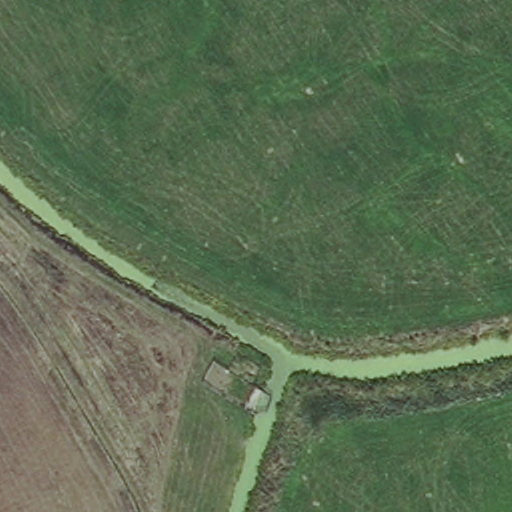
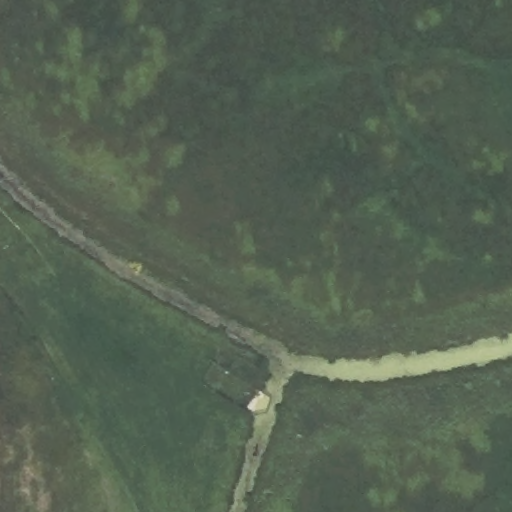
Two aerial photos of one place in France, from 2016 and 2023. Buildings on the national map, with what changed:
[]

